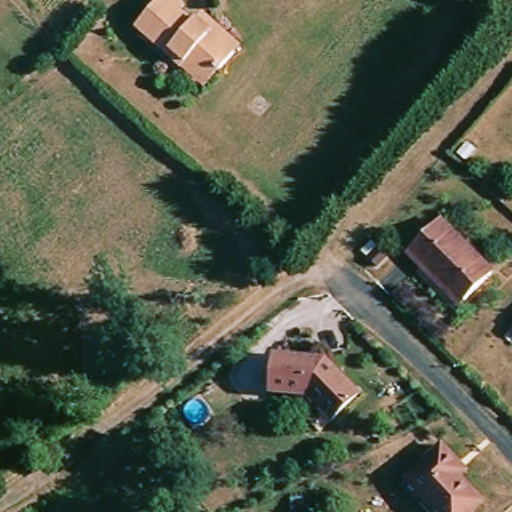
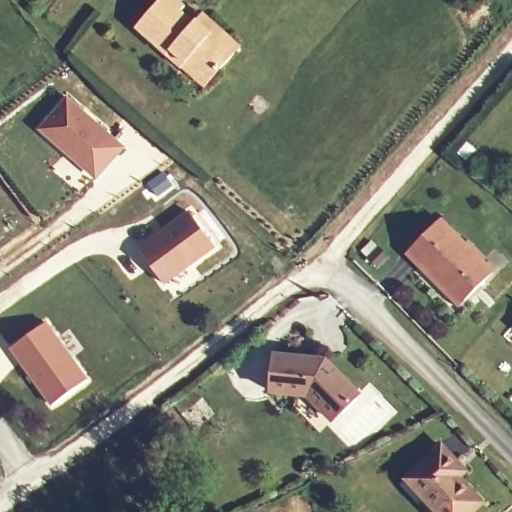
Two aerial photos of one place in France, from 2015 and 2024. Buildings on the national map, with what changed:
unchanged [(176,74),(130,33),(159,1),(160,0),(166,0),(180,12),(176,16),(189,28),(192,25),(197,19),(235,52),(230,59),(215,76),(202,89),(195,83),(180,69),(176,74)]
new [(67,93),(127,148),(96,181),(35,129),(67,93)]
new [(187,209),(216,247),(165,285),(137,247),(187,209)]
unchanged [(434,280),(407,253),(440,221),(493,273),(465,302),(460,306),(434,280)]
new [(46,321),(88,379),(50,406),(8,348),(46,321)]
unchanged [(360,390),(333,416),(308,391),(270,388),(274,351),(325,355),(360,390)]
unchanged [(483,503),(474,512),(436,512),(406,480),(442,446),(466,472),(460,478),(483,503)]
unchanged [(312,512),(292,512),(292,509),(312,507),(312,512)]

